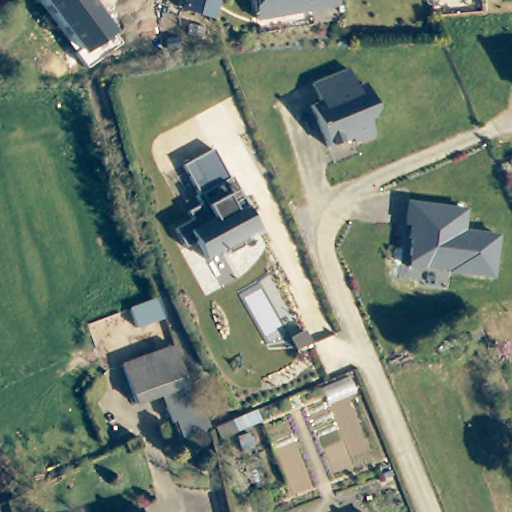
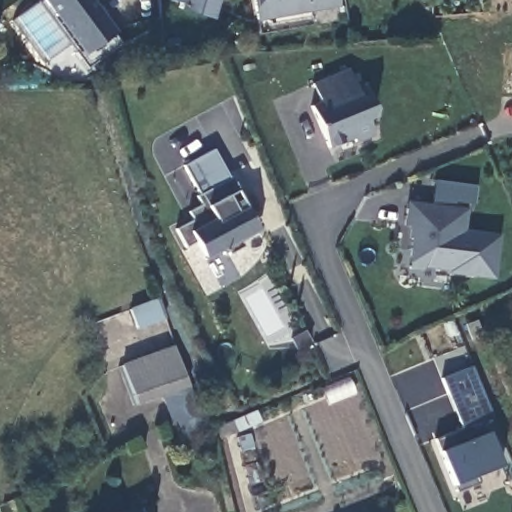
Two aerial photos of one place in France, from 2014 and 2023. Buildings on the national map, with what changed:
unchanged [(76,52),(80,49),(45,0),(91,0),(114,32),(122,44),(87,67),(76,52)]
unchanged [(215,15),(184,6),(186,0),(219,0),(215,15)]
unchanged [(340,4),(336,5),(258,17),(255,0),(339,0),(340,4)]
unchanged [(313,85),(348,69),(357,88),(365,85),(376,110),(373,116),(368,119),(375,135),(356,143),(353,137),(330,148),(311,107),(321,102),(313,85)]
unchanged [(246,200),(234,206),(240,218),(250,213),(260,231),(243,241),(246,248),(231,256),(230,254),(225,256),(222,251),(206,260),(197,244),(187,250),(177,231),(194,221),(190,214),(202,206),(197,197),(200,196),(185,167),(215,150),(231,179),(234,177),(246,200)]
unchanged [(466,210),(465,224),(453,222),(452,230),(499,236),(493,277),(450,271),(450,269),(426,266),(422,269),(410,267),(414,238),(411,238),(412,225),(407,225),(410,203),(466,210)]
unchanged [(129,328),(125,303),(158,292),(163,316),(129,328)]
unchanged [(138,410),(123,370),(175,350),(190,390),(200,417),(175,427),(165,400),(138,410)]
new [(473,477),(478,483),(457,491),(455,485),(441,451),(437,440),(464,430),(442,380),(472,368),(492,416),(481,421),(483,433),(488,431),(501,466),(473,477)]

